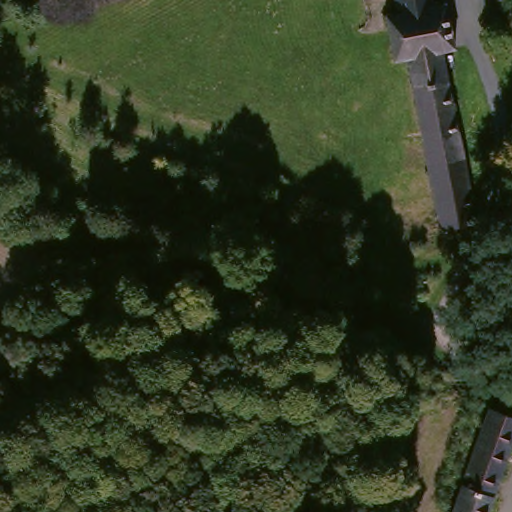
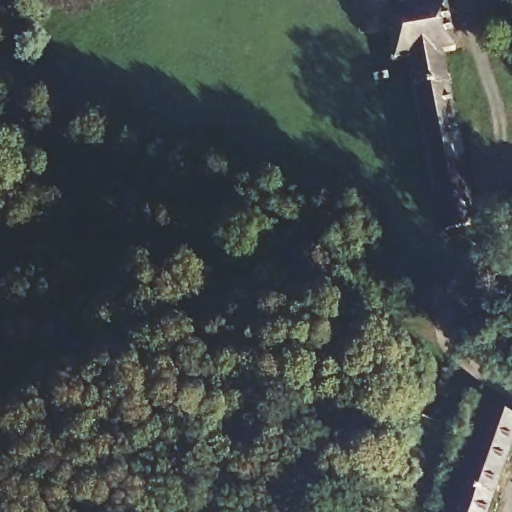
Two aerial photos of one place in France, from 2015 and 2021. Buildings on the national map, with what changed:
unchanged [(423,0),(425,8),(395,14),(392,0),(423,0)]
unchanged [(469,229),(441,235),(404,63),(394,64),(384,16),(395,14),(425,8),(443,5),(452,55),(434,57),(469,229)]
unchanged [(487,411),(512,419),(512,444),(486,512),(450,512),(452,509),(487,411)]

